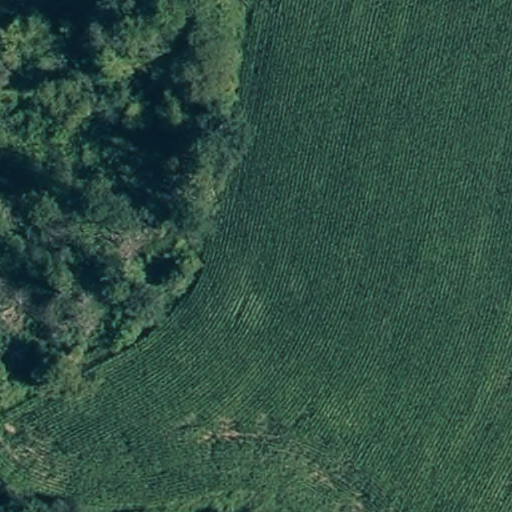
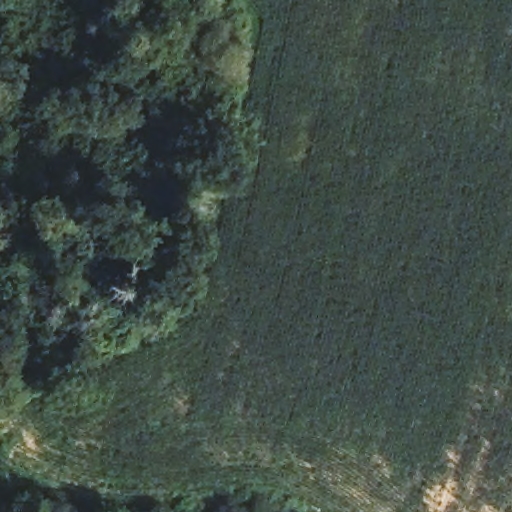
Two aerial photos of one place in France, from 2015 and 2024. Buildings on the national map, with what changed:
unchanged [(15,448),(0,448),(0,433),(13,432),(15,433),(15,448)]

